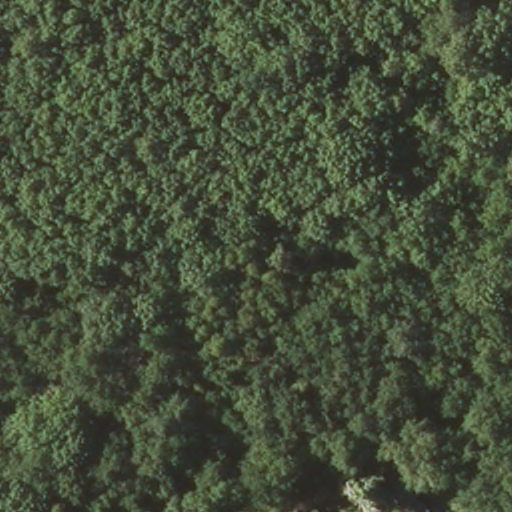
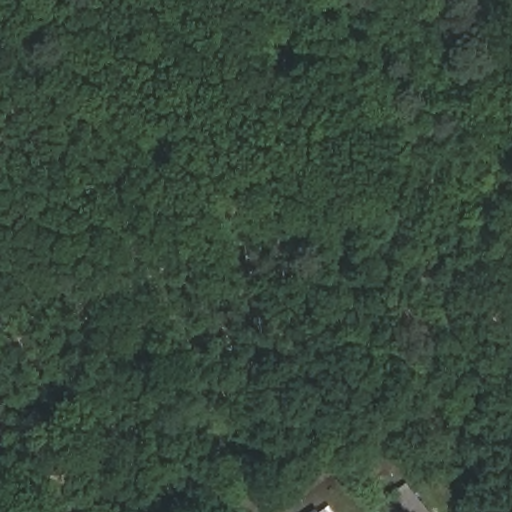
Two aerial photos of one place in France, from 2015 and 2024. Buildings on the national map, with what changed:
unchanged [(429,512),(400,512),(391,502),(409,484),(429,512)]

